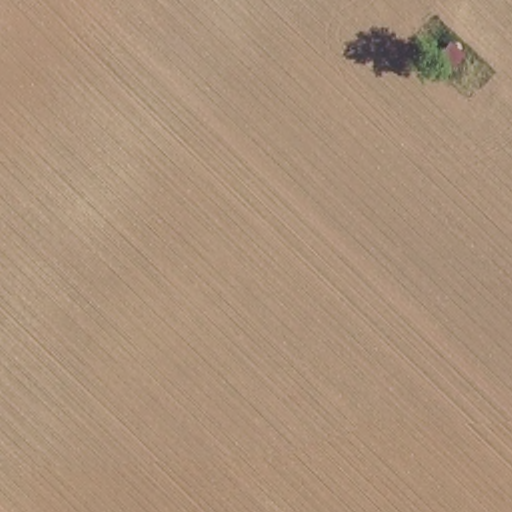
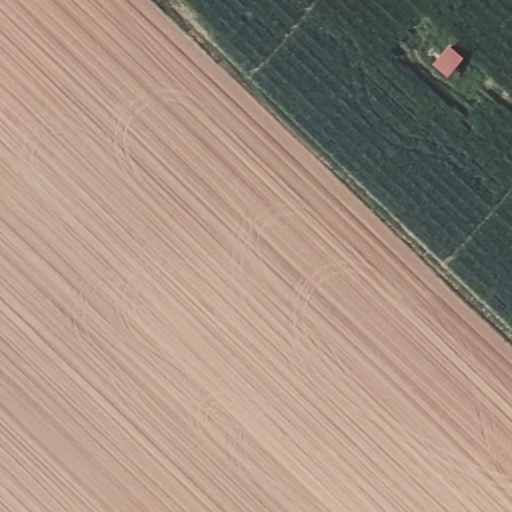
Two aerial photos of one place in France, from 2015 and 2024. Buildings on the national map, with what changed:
unchanged [(426,59),(443,45),(455,56),(440,72),(426,59)]

